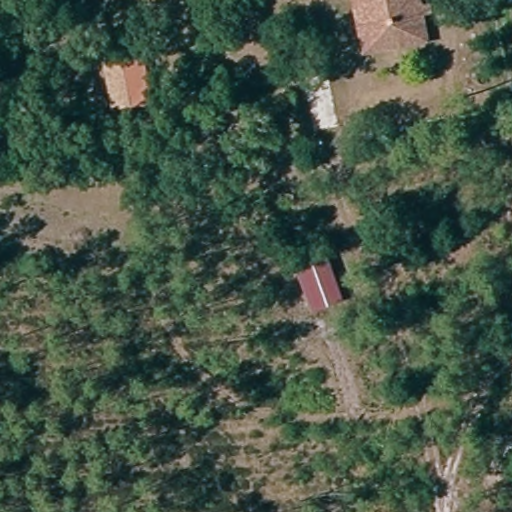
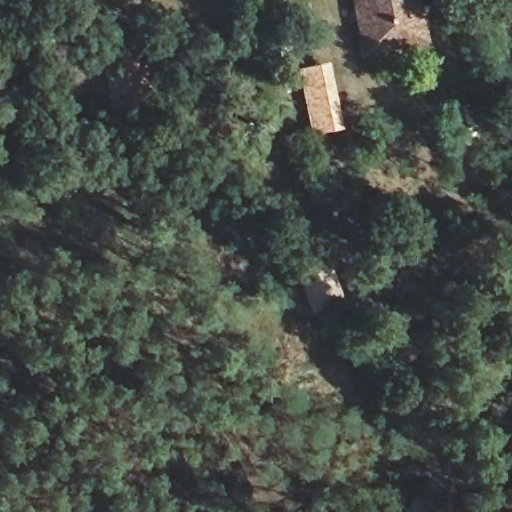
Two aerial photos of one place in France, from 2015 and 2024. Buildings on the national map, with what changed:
unchanged [(423,40),(363,51),(353,0),(416,0),(423,40)]
unchanged [(152,94),(117,102),(107,59),(142,50),(152,94)]
new [(309,120),(301,80),(331,74),(342,129),(316,134),(309,120)]
unchanged [(341,305),(313,316),(293,263),(321,252),(341,305)]

